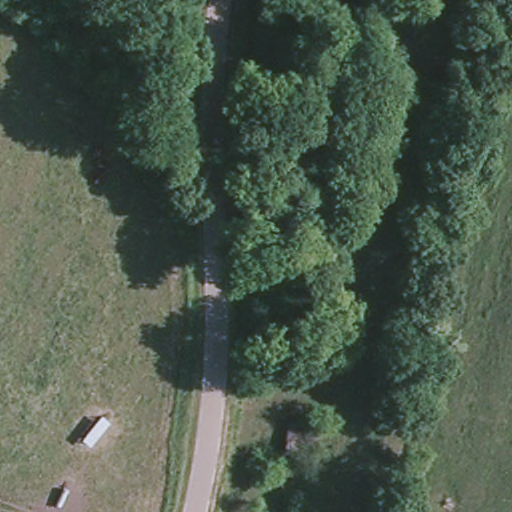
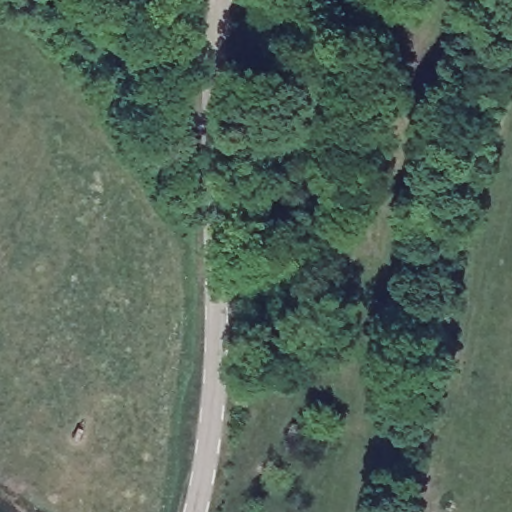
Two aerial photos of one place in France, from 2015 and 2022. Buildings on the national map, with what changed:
unchanged [(320,455),(292,450),(293,420),(324,424),(320,455)]

